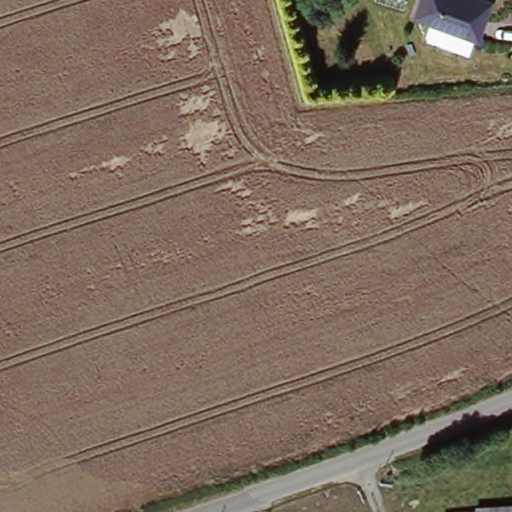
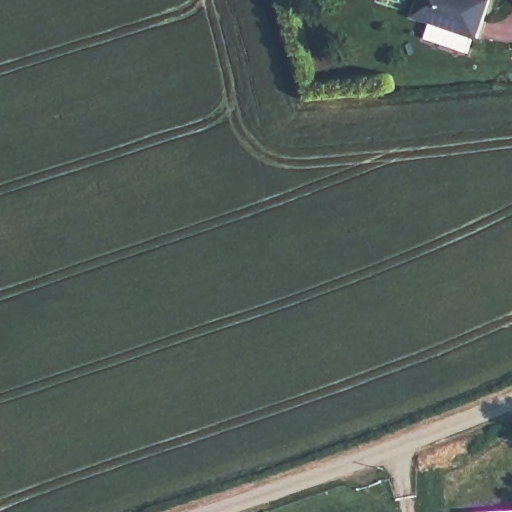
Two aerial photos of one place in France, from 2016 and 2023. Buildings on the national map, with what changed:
unchanged [(428,36),(434,21),(417,15),(422,0),(492,0),(474,51),(428,36)]

